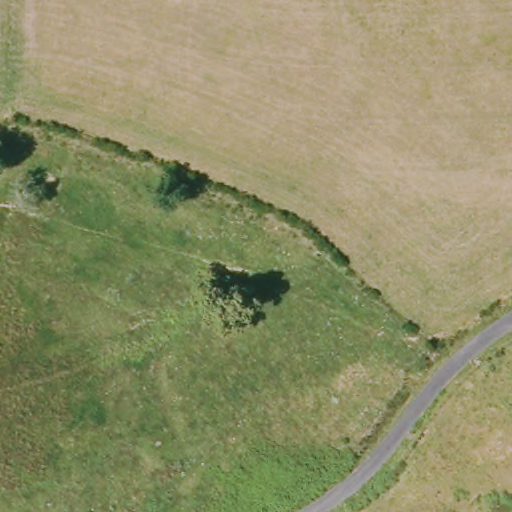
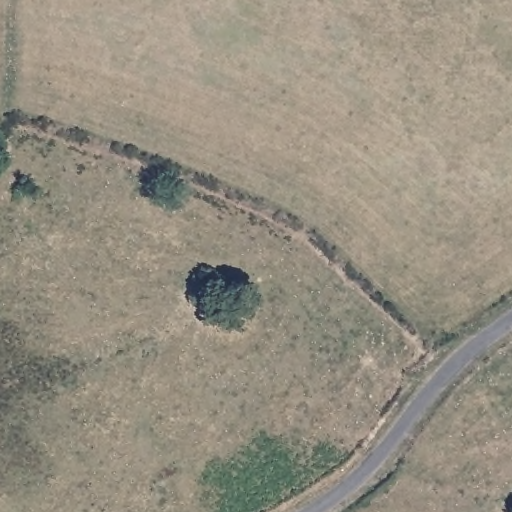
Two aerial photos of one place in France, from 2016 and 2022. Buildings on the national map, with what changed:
[]

